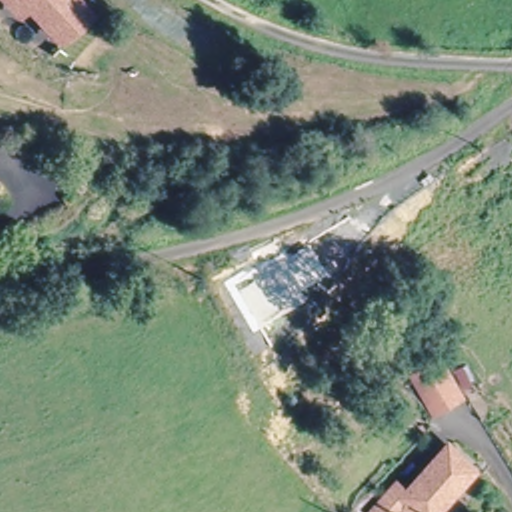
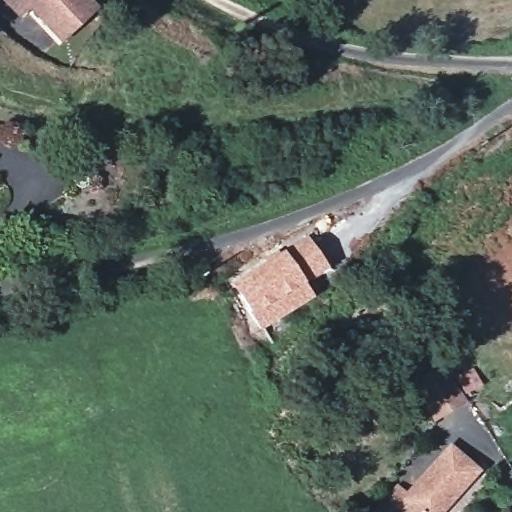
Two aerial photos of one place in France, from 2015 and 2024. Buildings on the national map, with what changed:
unchanged [(30,0),(21,9),(12,0),(86,0),(92,6),(80,17),(61,34),(51,21),(30,0)]
new [(259,331),(249,315),(229,284),(283,251),(306,236),(328,269),(304,284),(312,298),(259,331)]
unchanged [(464,397),(434,418),(413,384),(446,366),(464,397)]
unchanged [(427,512),(412,503),(405,512),(374,512),(396,483),(411,492),(445,444),(470,463),(435,512),(427,512)]

